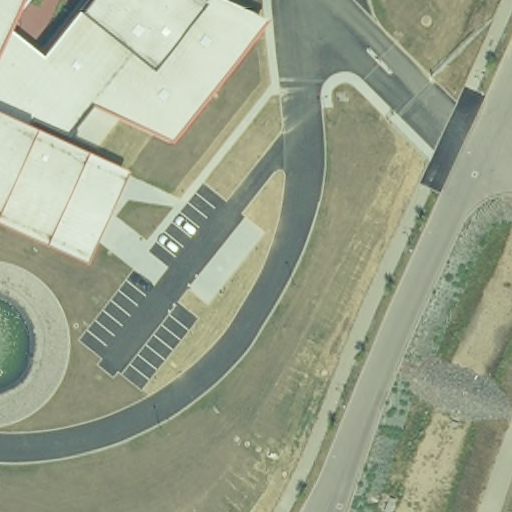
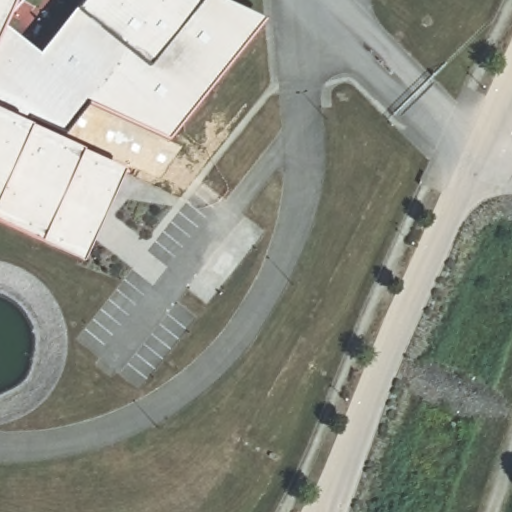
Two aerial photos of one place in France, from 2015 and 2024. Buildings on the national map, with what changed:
unchanged [(166,138),(88,103),(59,138),(81,148),(123,167),(82,259),(40,241),(0,223),(0,0),(20,0),(1,23),(38,55),(76,9),(83,0),(225,0),(265,18),(166,138)]

